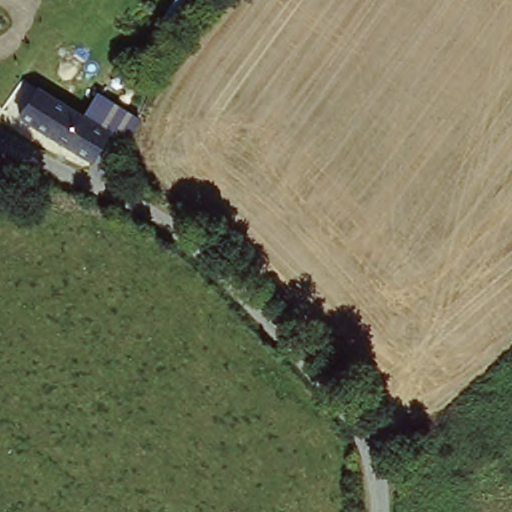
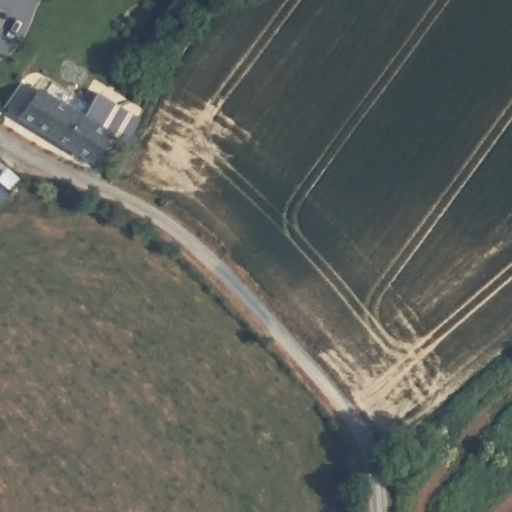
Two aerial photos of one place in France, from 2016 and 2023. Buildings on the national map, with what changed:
unchanged [(82,116),(97,93),(134,117),(117,143),(105,132),(87,161),(17,115),(37,88),(82,116)]

